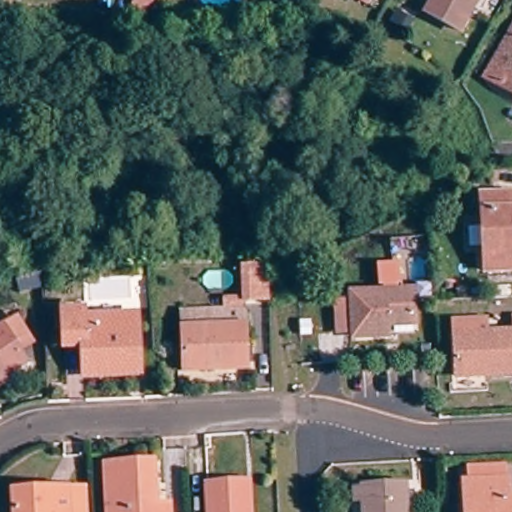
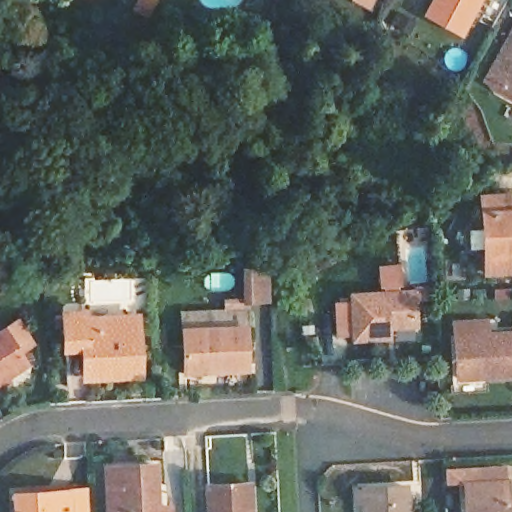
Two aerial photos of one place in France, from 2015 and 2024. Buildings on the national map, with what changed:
unchanged [(130,25),(132,21),(134,18),(144,0),(157,8),(147,25),(144,31),(130,25)]
unchanged [(354,0),(366,0),(363,5),(354,0)]
unchanged [(484,0),(463,38),(427,19),(415,12),(421,0),(484,0)]
unchanged [(512,22),(512,94),(481,78),(512,22)]
unchanged [(455,271),(454,251),(484,250),(482,209),(511,208),(512,223),(512,268),(485,270),(455,271)]
unchanged [(415,327),(386,329),(388,340),(355,343),(353,336),(335,338),(333,307),(352,305),(351,300),(380,297),(378,277),(400,275),(402,295),(412,294),(415,327)]
unchanged [(178,314),(241,308),(244,327),(180,333),(178,314)]
unchanged [(80,382),(79,349),(59,352),(59,314),(78,314),(77,322),(134,318),(133,377),(80,382)]
unchanged [(450,342),(450,323),(485,320),(485,340),(512,337),(512,379),(452,385),(450,342)]
unchanged [(0,382),(0,329),(1,328),(11,322),(30,349),(19,356),(25,365),(0,382)]
unchanged [(182,378),(180,333),(244,327),(245,372),(182,378)]
unchanged [(104,463),(149,460),(150,500),(168,501),(168,512),(105,512),(104,463)]
unchanged [(457,491),(465,491),(463,478),(498,475),(500,487),(502,504),(512,502),(512,512),(459,512),(457,491)]
unchanged [(9,487),(59,485),(59,484),(63,484),(83,483),(83,494),(84,512),(9,512),(9,487)]
unchanged [(358,503),(348,505),(346,490),(357,489),(400,483),(403,512),(359,512),(358,503)]
unchanged [(206,489),(250,487),(251,512),(207,512),(206,489)]

